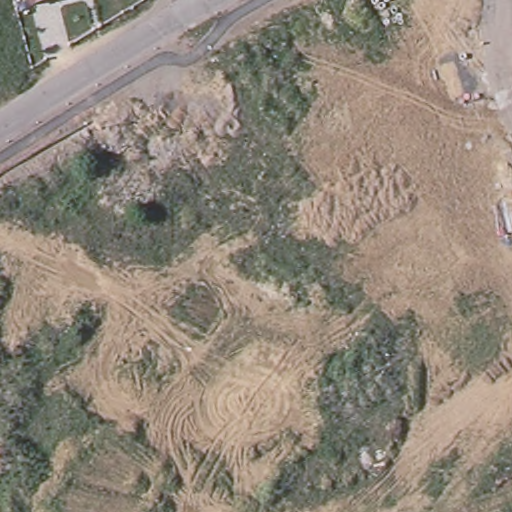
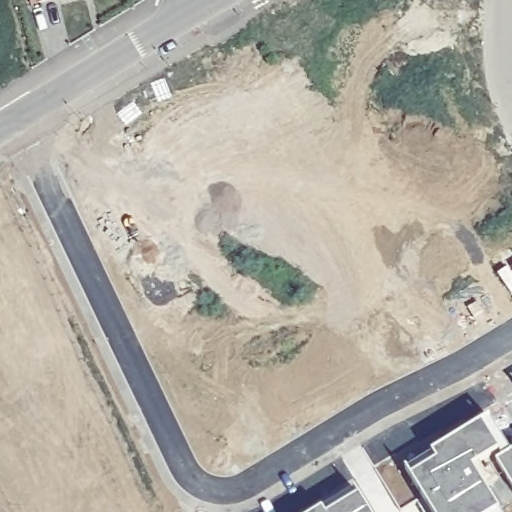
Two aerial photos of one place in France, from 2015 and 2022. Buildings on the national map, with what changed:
unchanged [(29,0),(45,0),(30,5),(29,0)]
unchanged [(57,0),(75,0),(57,5),(57,0)]
new [(485,415),(503,442),(472,458),(498,505),(485,512),(436,512),(405,460),(485,415)]
new [(512,485),(494,455),(512,445),(512,485)]
new [(322,502),(325,508),(360,491),(373,512),(307,512),(322,502)]

